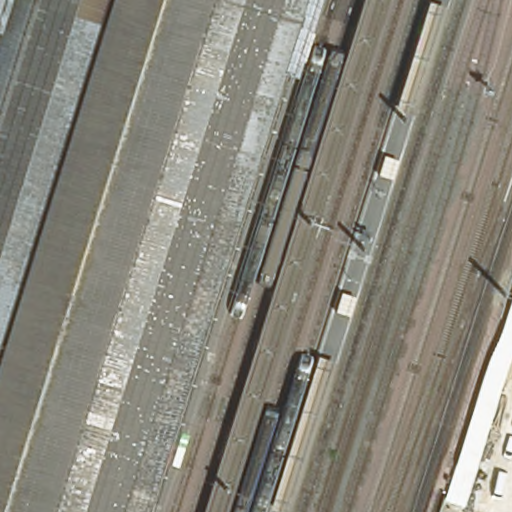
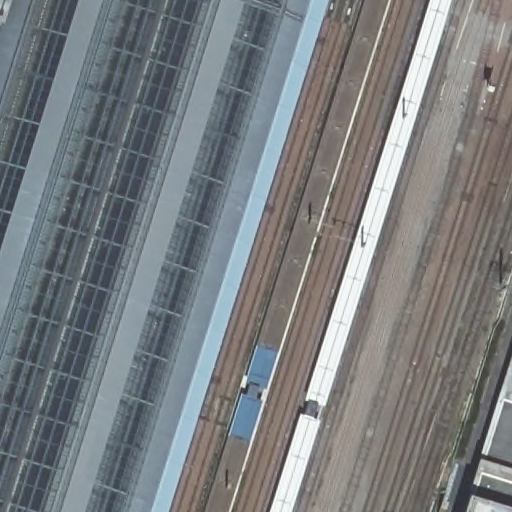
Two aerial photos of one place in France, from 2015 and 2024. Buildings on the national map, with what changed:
unchanged [(0,18),(0,0),(6,0),(0,18)]
unchanged [(149,512),(0,512),(0,18),(6,0),(309,0),(149,512)]
unchanged [(167,512),(149,512),(309,0),(327,0),(167,512)]
unchanged [(234,512),(195,512),(355,0),(393,0),(234,512)]
unchanged [(412,116),(392,110),(426,0),(430,0),(445,5),(412,116)]
new [(512,348),(512,512),(459,512),(465,495),(512,348)]
unchanged [(276,512),(268,510),(316,355),(335,362),(289,512),(276,512)]
demolished [(494,461),(482,500),(452,490),(463,452),(494,461)]

